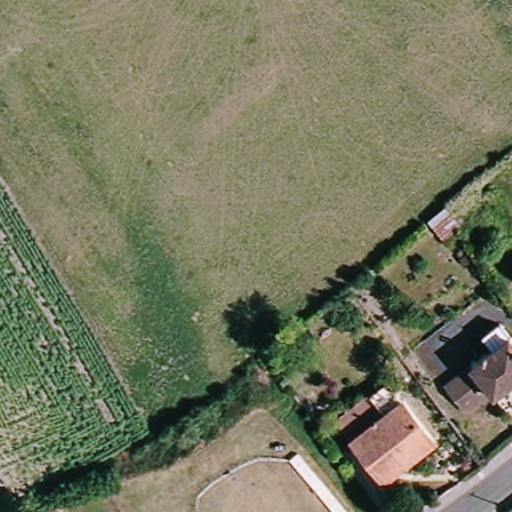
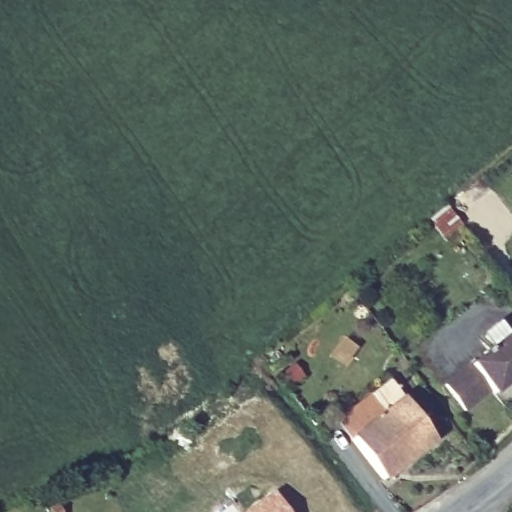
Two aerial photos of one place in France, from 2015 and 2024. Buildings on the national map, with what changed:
unchanged [(501,312),(483,289),(494,280),(512,304),(512,305),(501,312)]
unchanged [(494,392),(472,408),(453,384),(500,348),(493,339),(507,329),(512,337),(512,386),(498,397),(494,392)]
unchanged [(436,441),(387,478),(355,437),(343,422),(375,397),(392,384),(436,441)]
new [(273,491),(289,512),(243,512),(273,491)]

